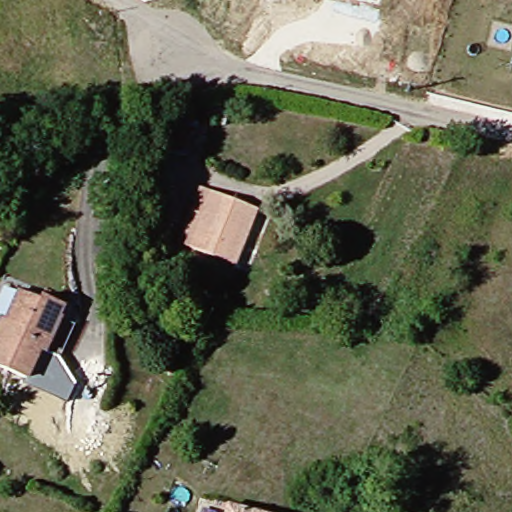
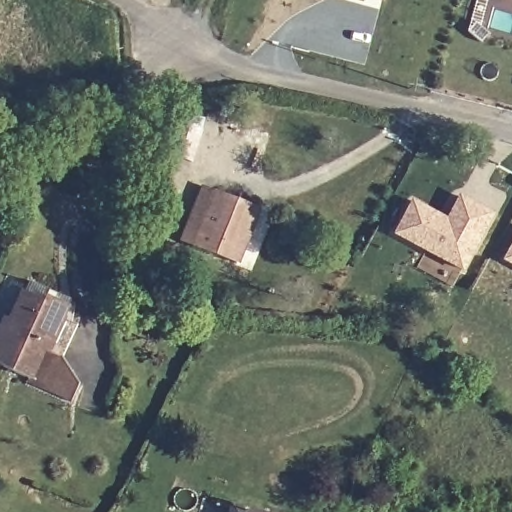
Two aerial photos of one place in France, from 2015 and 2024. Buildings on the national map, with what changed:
unchanged [(375,0),(381,0),(381,1),(375,0)]
unchanged [(212,131),(207,155),(182,149),(187,125),(212,131)]
unchanged [(253,206),(239,254),(194,244),(209,192),(253,206)]
new [(461,273),(392,235),(411,199),(446,218),(458,194),(494,215),(461,273)]
new [(512,242),(512,268),(501,262),(512,242)]
unchanged [(181,295),(171,296),(172,276),(182,274),(181,295)]
unchanged [(4,320),(8,322),(26,291),(43,302),(47,296),(72,308),(65,320),(75,329),(66,353),(53,346),(47,357),(42,354),(25,381),(0,368),(0,331),(4,320)]
unchanged [(243,512),(235,512),(236,509),(243,512)]

